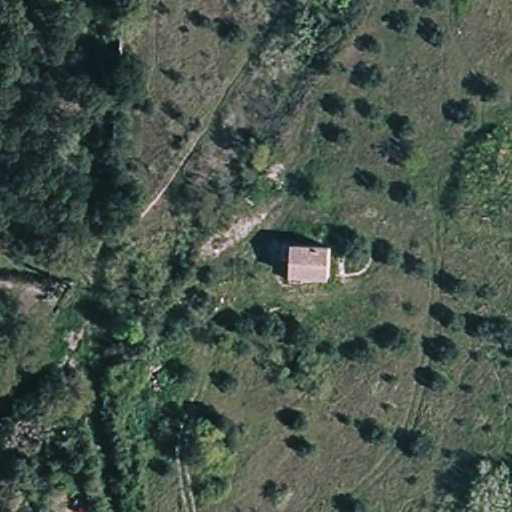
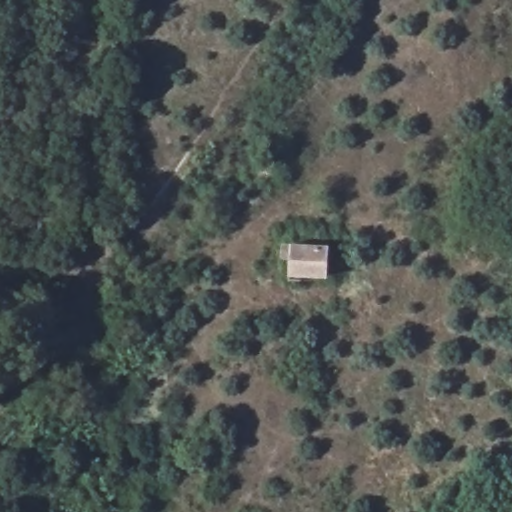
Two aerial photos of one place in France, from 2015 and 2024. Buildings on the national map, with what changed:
unchanged [(324,275),(287,275),(287,246),(326,246),(324,275)]

